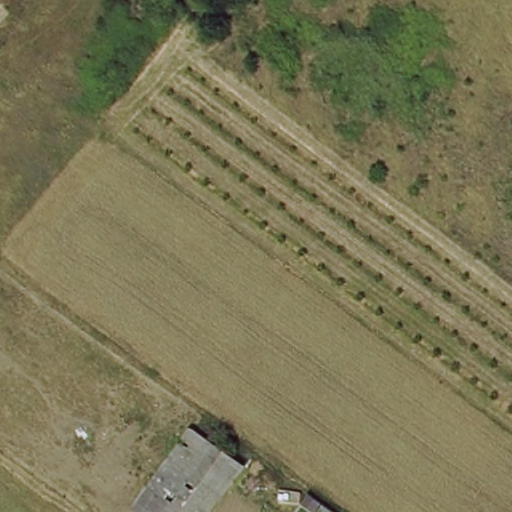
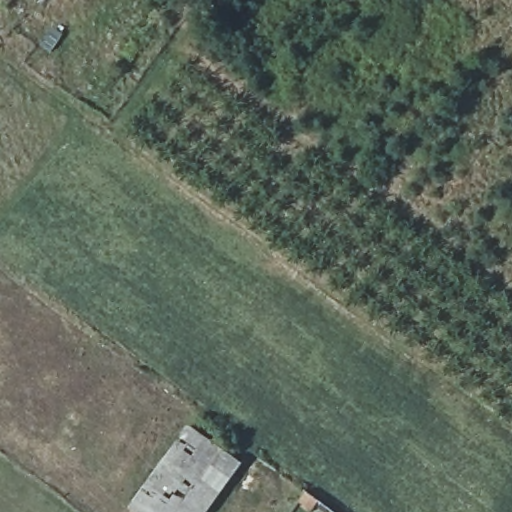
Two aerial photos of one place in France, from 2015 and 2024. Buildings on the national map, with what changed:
unchanged [(245,467),(213,512),(138,512),(135,509),(196,429),(245,467)]

